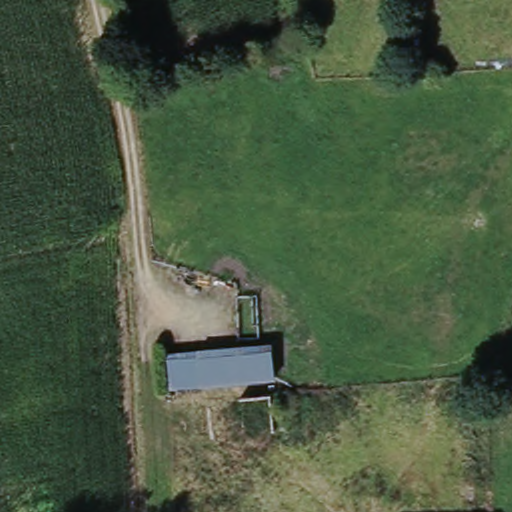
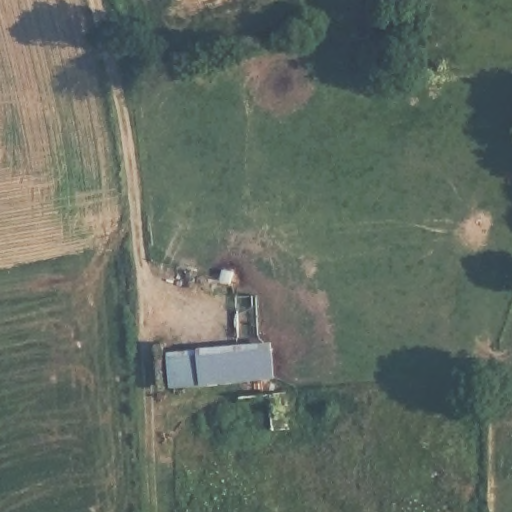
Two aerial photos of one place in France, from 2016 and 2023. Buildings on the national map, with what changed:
unchanged [(444,64),(412,70),(410,56),(397,55),(392,18),(438,17),(444,64)]
unchanged [(172,354),(203,353),(203,358),(205,387),(174,389),(172,354)]
unchanged [(277,353),(278,382),(205,387),(203,358),(277,353)]

